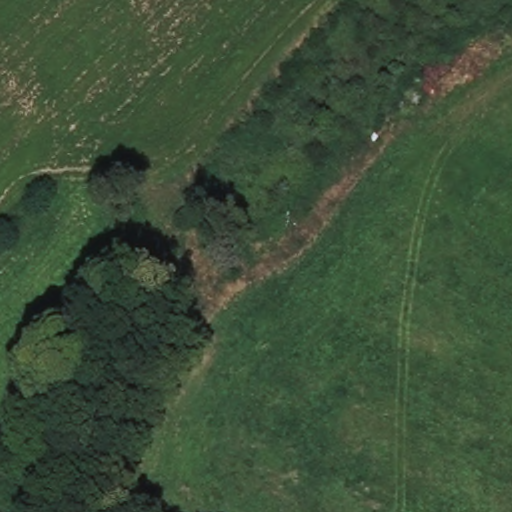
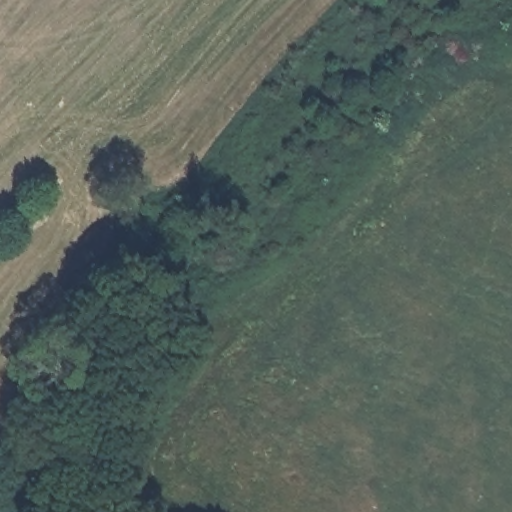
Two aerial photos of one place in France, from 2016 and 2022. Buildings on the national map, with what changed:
[]

